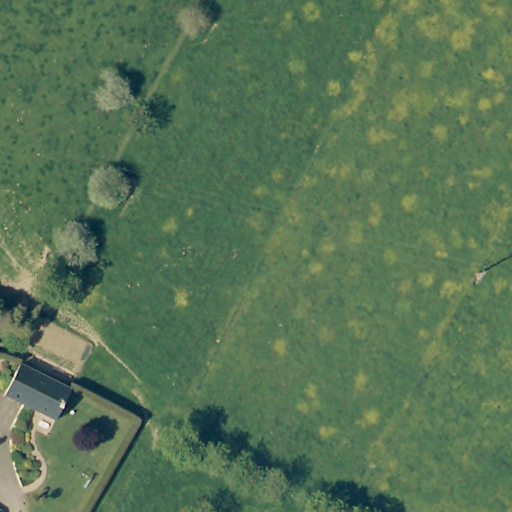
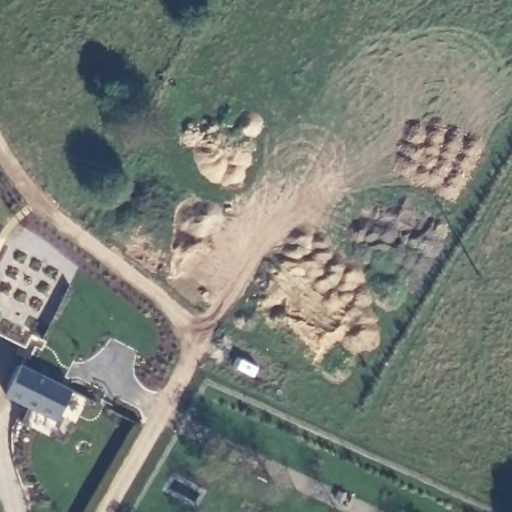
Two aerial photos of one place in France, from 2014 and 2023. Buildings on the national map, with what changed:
unchanged [(51,421),(0,395),(15,363),(66,388),(51,421)]
unchanged [(0,512),(0,509),(1,510),(0,512)]

